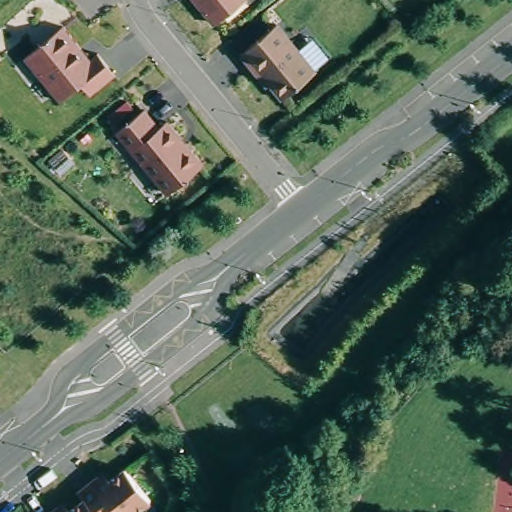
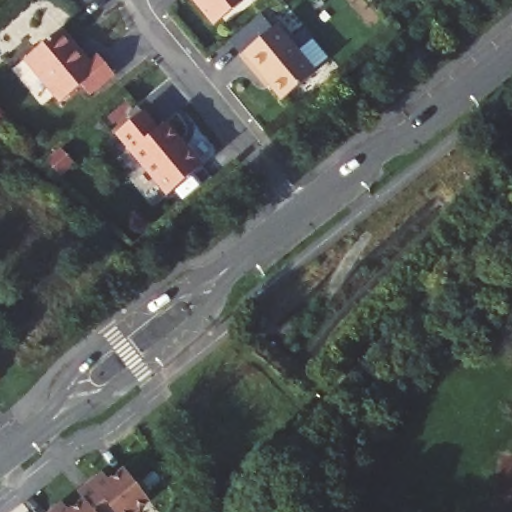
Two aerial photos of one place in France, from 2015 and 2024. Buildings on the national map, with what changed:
unchanged [(215,25),(194,0),(245,0),(215,25)]
unchanged [(282,100),(261,76),(259,78),(240,56),(276,26),(315,72),(282,100)]
unchanged [(62,28),(90,61),(97,55),(115,76),(90,96),(81,85),(60,103),(23,60),(62,28)]
unchanged [(115,134),(142,111),(157,129),(165,123),(201,167),(166,196),(115,134)]
unchanged [(91,482),(93,486),(100,481),(109,482),(125,470),(150,501),(136,512),(93,512),(83,500),(77,493),(91,482)]

